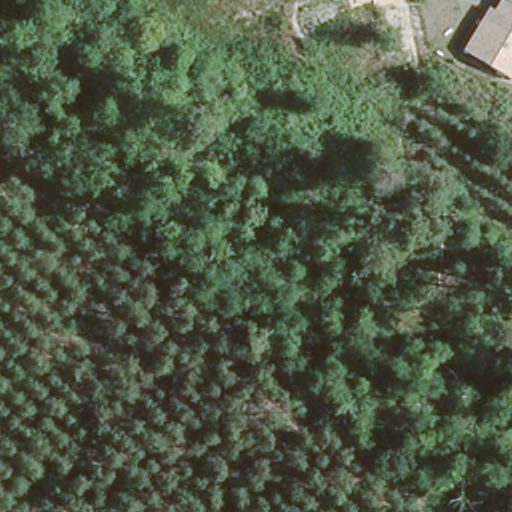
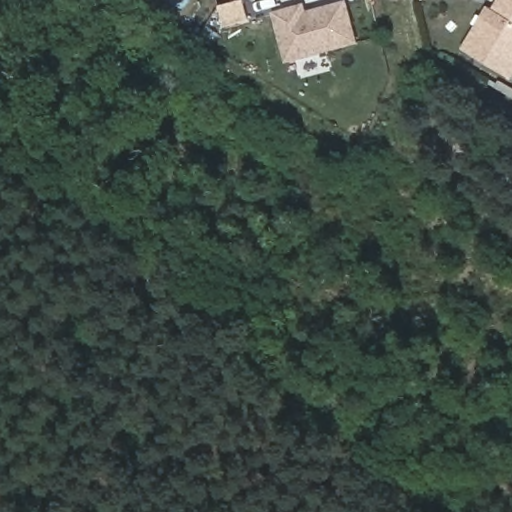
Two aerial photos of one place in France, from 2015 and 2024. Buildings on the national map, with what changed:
new [(241,0),(242,0),(247,21),(224,28),(218,7),(241,0)]
unchanged [(463,49),(490,6),(494,8),(499,0),(512,0),(512,79),(463,49)]
new [(358,42),(288,60),(276,14),(304,6),(306,13),(346,3),(358,42)]

